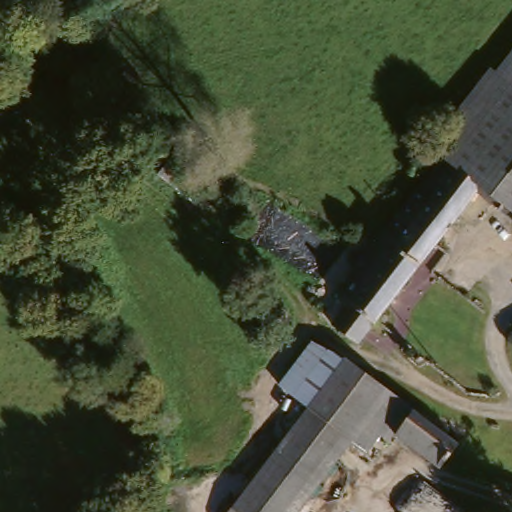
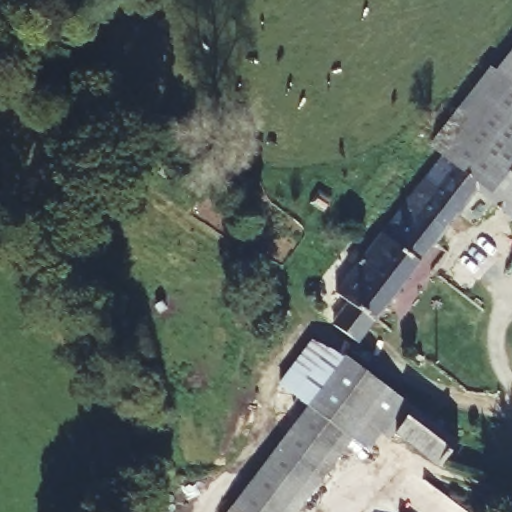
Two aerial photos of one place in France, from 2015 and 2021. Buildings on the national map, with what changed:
unchanged [(512,64),(512,178),(458,138),(512,64)]
unchanged [(479,195),(360,348),(325,321),(340,299),(335,293),(424,176),(428,178),(458,138),(512,178),(512,220),(479,195)]
unchanged [(312,411),(286,392),(310,348),(345,367),(312,411)]
unchanged [(408,414),(390,438),(371,463),(348,446),(295,512),(235,512),(312,411),(345,367),(408,414)]
unchanged [(443,420),(465,437),(455,449),(438,473),(390,438),(408,414),(433,433),(443,420)]

